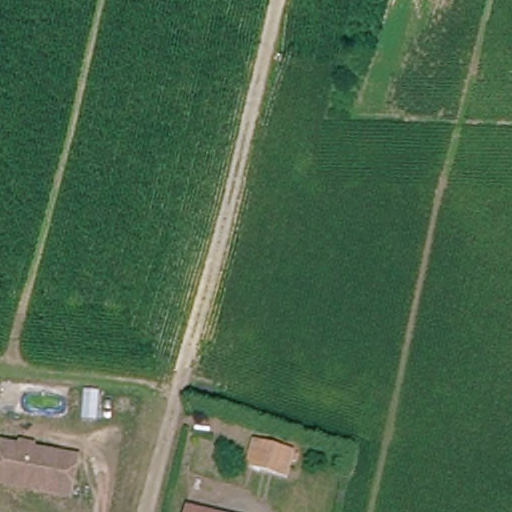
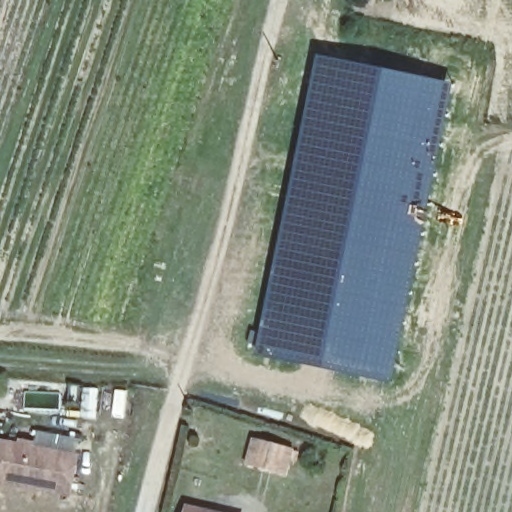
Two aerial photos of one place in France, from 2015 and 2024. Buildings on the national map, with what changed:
new [(284,232),(301,149),(298,149),(302,130),(312,96),(320,55),(448,82),(437,139),(436,161),(427,206),(425,227),(392,382),(325,368),(256,350),(284,232)]
unchanged [(295,446),(289,471),(249,462),(255,437),(295,446)]
unchanged [(9,485),(1,483),(0,481),(0,454),(3,443),(16,447),(19,438),(33,442),(31,451),(74,460),(66,497),(9,485)]
unchanged [(191,504),(228,512),(189,512),(191,504)]

